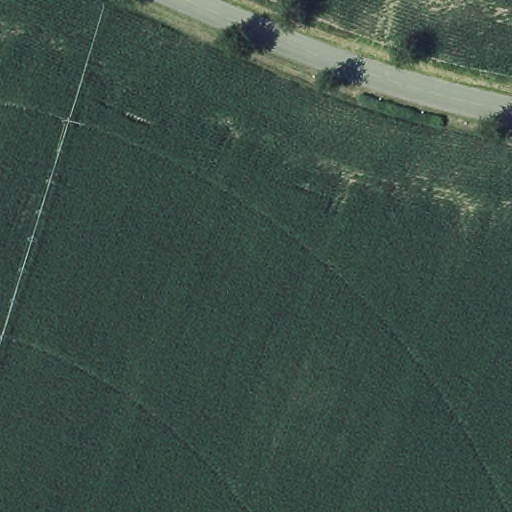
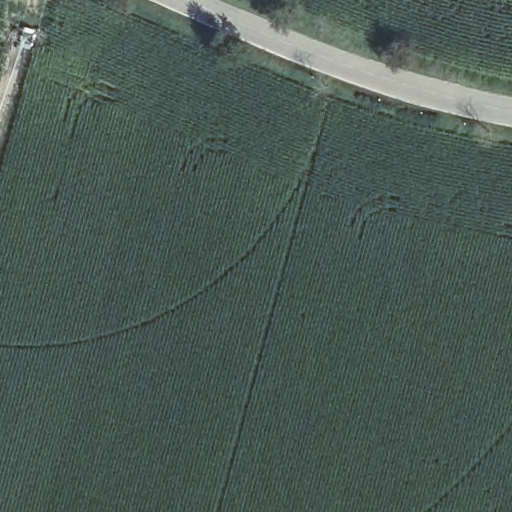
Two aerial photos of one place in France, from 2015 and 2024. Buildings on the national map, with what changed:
[]

